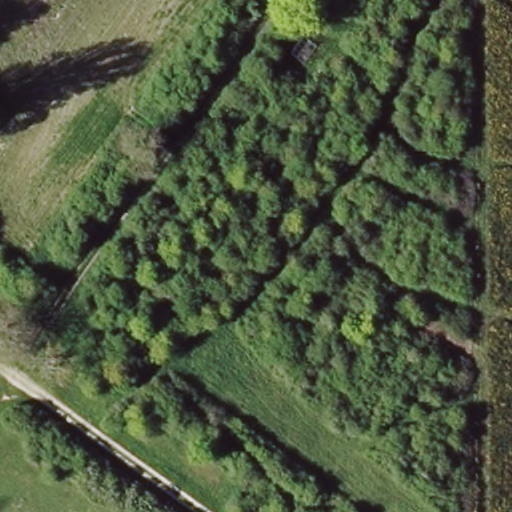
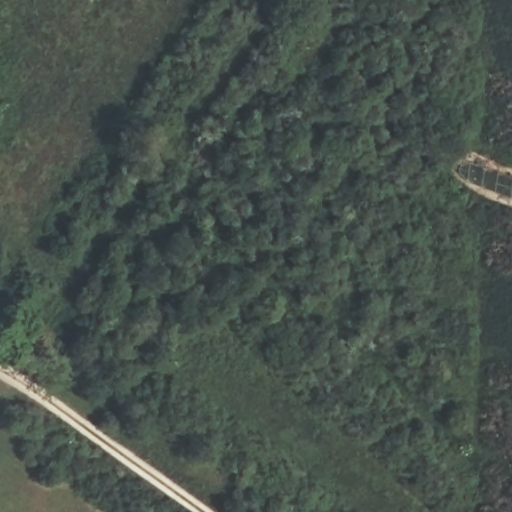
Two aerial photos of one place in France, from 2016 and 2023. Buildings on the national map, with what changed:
[]

